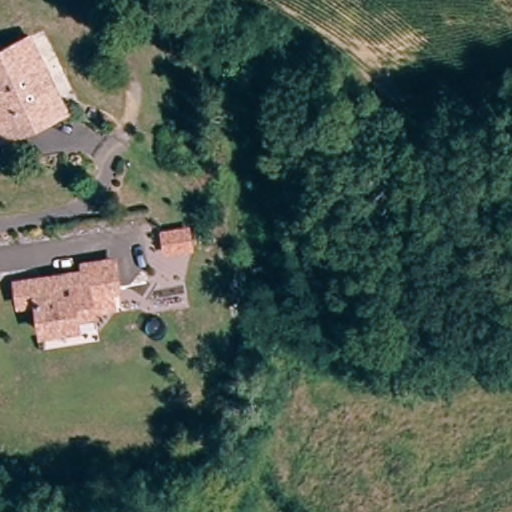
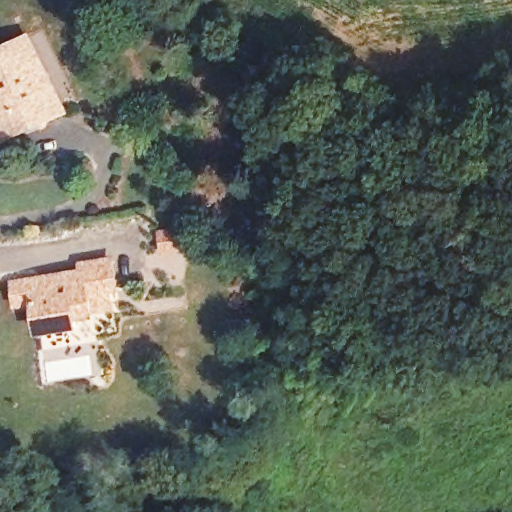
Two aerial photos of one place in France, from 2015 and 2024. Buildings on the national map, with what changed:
unchanged [(69,107),(8,136),(0,140),(0,47),(31,33),(69,107)]
unchanged [(95,306),(95,308),(77,311),(79,322),(41,327),(36,296),(18,299),(15,278),(86,268),(85,263),(115,258),(120,284),(112,285),(115,303),(95,306)]

